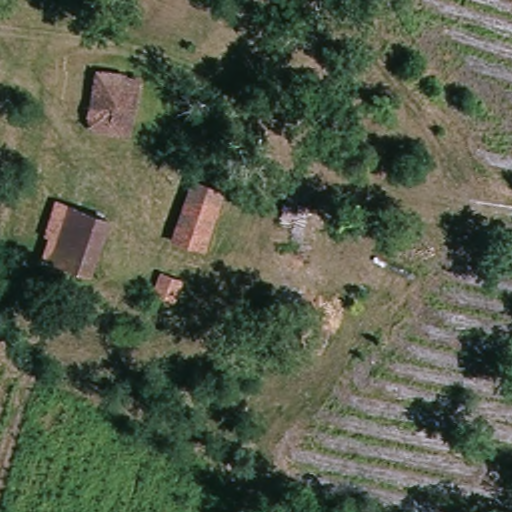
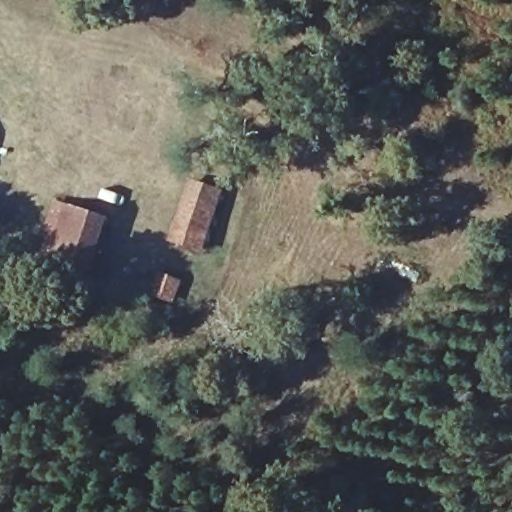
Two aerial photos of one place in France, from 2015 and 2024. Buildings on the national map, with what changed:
demolished [(139,133),(74,119),(89,64),(155,81),(139,133)]
unchanged [(205,250),(179,240),(200,182),(224,190),(205,250)]
unchanged [(90,274),(66,266),(51,261),(68,207),(85,212),(107,219),(90,274)]
unchanged [(160,280),(165,261),(188,269),(182,288),(160,280)]

